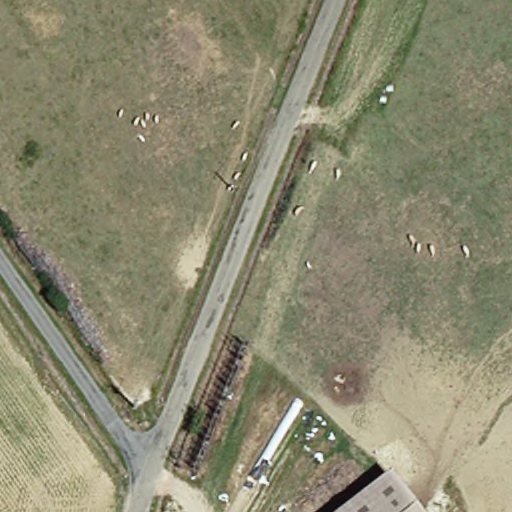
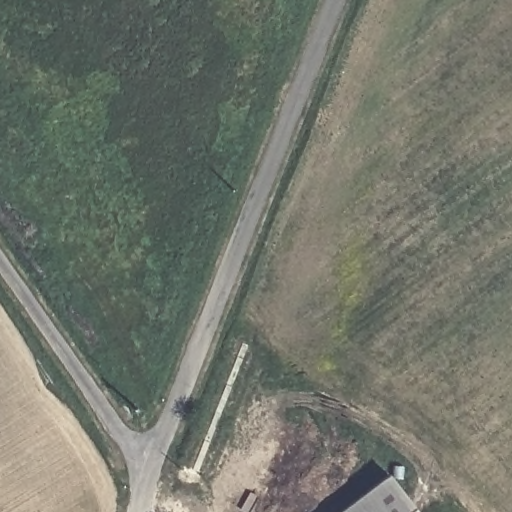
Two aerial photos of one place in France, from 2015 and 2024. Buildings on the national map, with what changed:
unchanged [(420,512),(350,512),(398,480),(420,512)]

